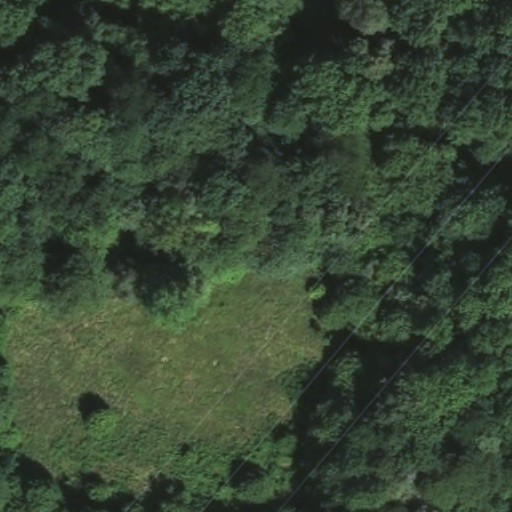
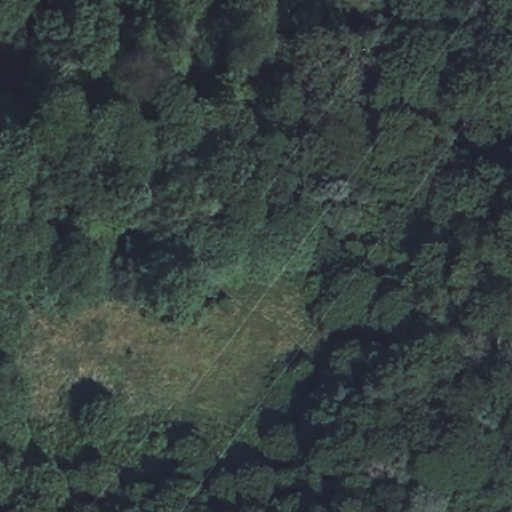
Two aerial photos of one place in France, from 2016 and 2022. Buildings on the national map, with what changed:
[]

